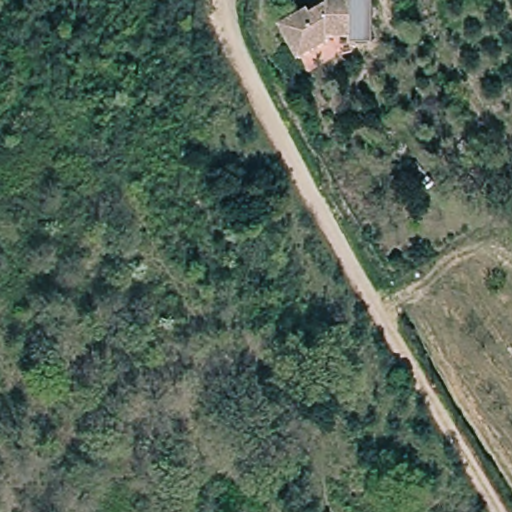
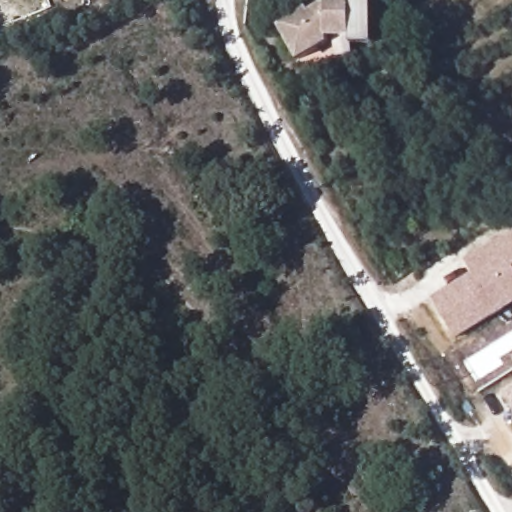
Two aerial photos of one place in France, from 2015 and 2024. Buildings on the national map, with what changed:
unchanged [(374,26),(358,26),(358,41),(338,41),(304,61),(285,28),(333,1),(332,0),(373,0),(374,26)]
new [(476,287),(464,266),(512,239),(512,308),(453,342),(435,310),(476,287)]
new [(512,394),(512,407),(507,397),(512,394)]

